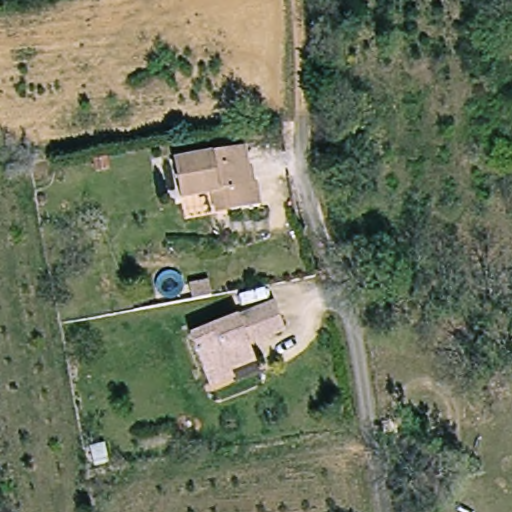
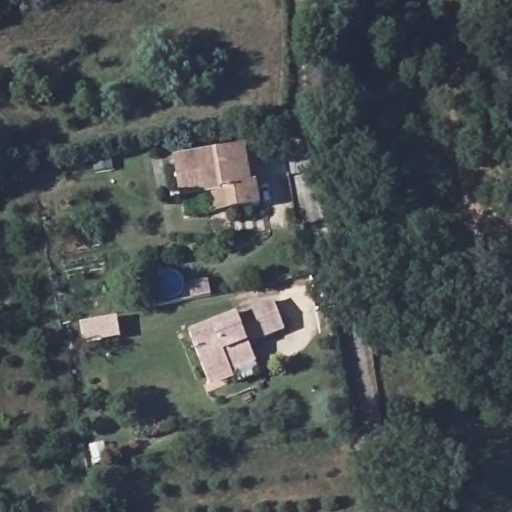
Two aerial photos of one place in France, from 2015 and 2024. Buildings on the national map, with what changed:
unchanged [(247,144),(253,185),(258,185),(260,210),(228,214),(225,190),(180,195),(176,152),(247,144)]
unchanged [(273,301),(281,322),(245,336),(251,355),(227,363),(229,373),(205,380),(189,329),(273,301)]

